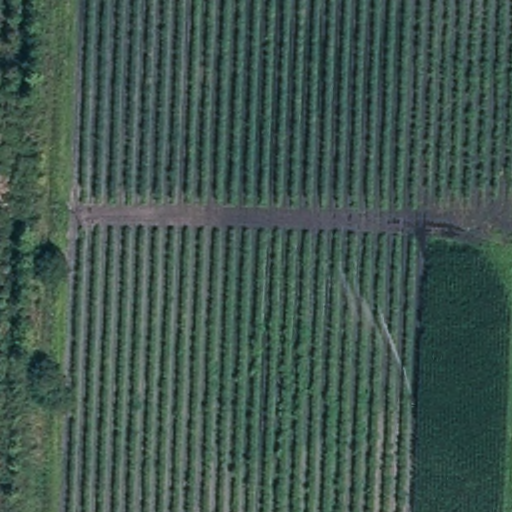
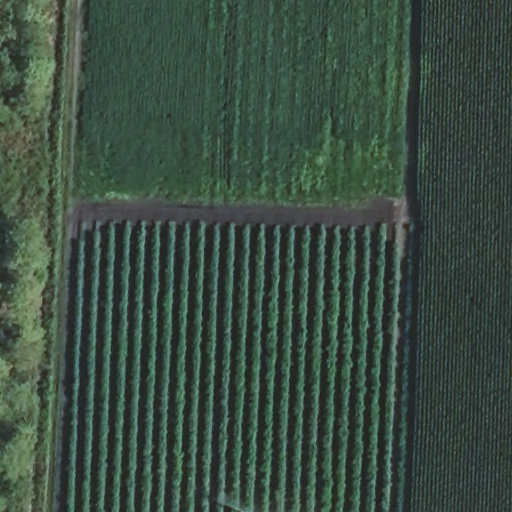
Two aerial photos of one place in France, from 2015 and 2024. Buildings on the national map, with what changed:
[]

